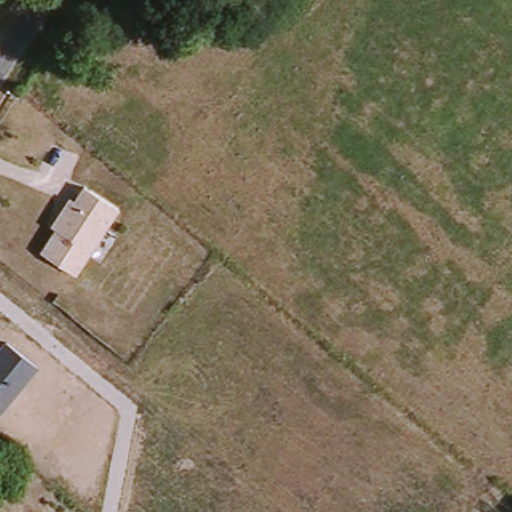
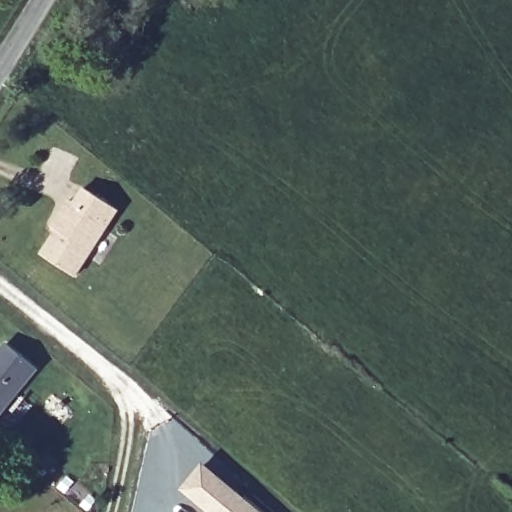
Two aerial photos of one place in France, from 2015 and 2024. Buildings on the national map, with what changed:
unchanged [(119,209),(75,274),(42,252),(62,220),(61,213),(72,198),(76,201),(85,186),(119,209)]
unchanged [(0,416),(0,347),(5,341),(37,367),(0,416)]
new [(264,512),(208,512),(181,489),(203,461),(264,512)]

